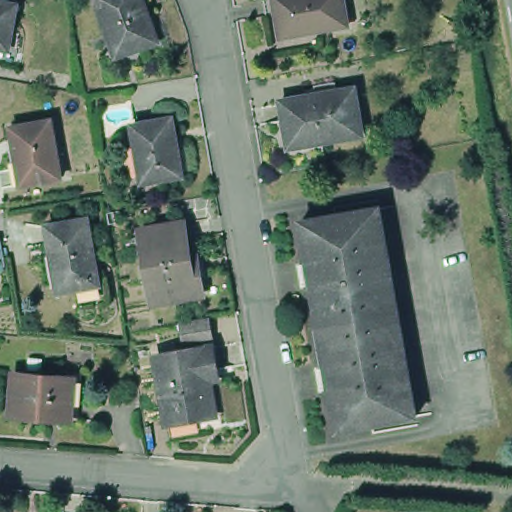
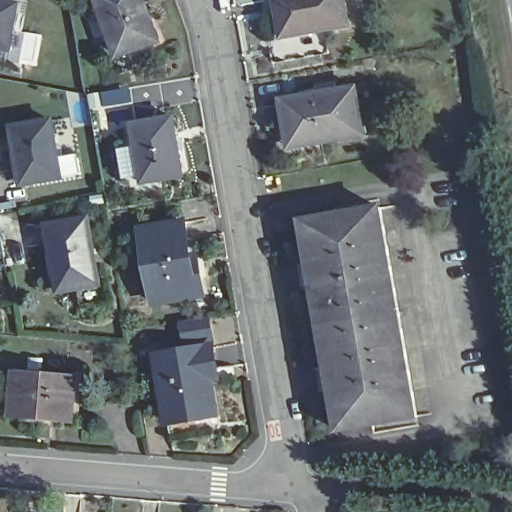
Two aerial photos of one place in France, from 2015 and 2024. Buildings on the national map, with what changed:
unchanged [(12,42),(11,46),(0,44),(0,0),(14,0),(19,1),(12,42)]
unchanged [(88,0),(136,0),(150,42),(127,50),(108,57),(107,52),(88,0)]
unchanged [(336,0),(340,25),(272,36),(267,0),(336,0)]
unchanged [(277,94),(351,81),(360,129),(318,136),(285,141),(283,133),(277,94)]
unchanged [(9,123),(48,115),(58,173),(18,180),(9,123)]
unchanged [(128,123),(169,117),(179,176),(138,182),(128,123)]
unchanged [(303,220),(380,206),(417,416),(340,429),(303,220)]
unchanged [(138,224),(180,217),(186,252),(193,251),(200,289),(150,297),(138,224)]
unchanged [(43,226),(84,219),(95,287),(53,293),(43,226)]
unchanged [(207,344),(183,349),(179,326),(203,321),(207,344)]
unchanged [(153,361),(208,351),(213,382),(206,384),(212,421),(165,429),(153,361)]
unchanged [(10,374),(71,379),(67,419),(7,415),(10,374)]

